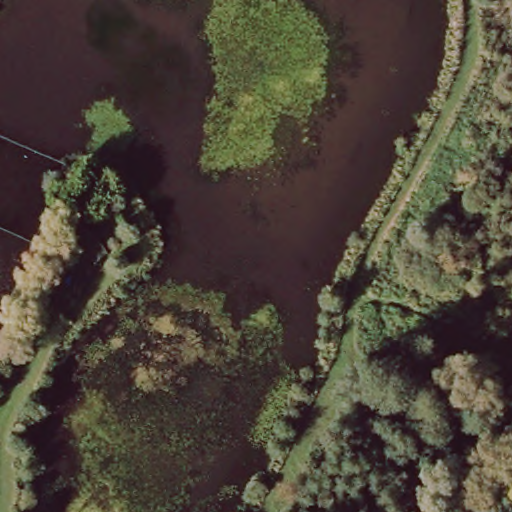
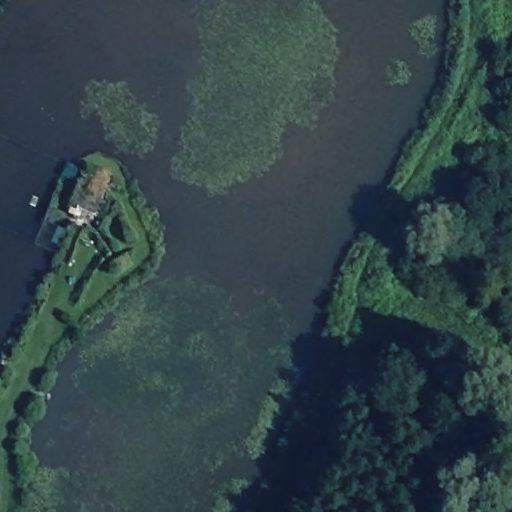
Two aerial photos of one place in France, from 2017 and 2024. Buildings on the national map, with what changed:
unchanged [(110,195),(100,212),(85,204),(94,187),(104,192),(110,195)]

